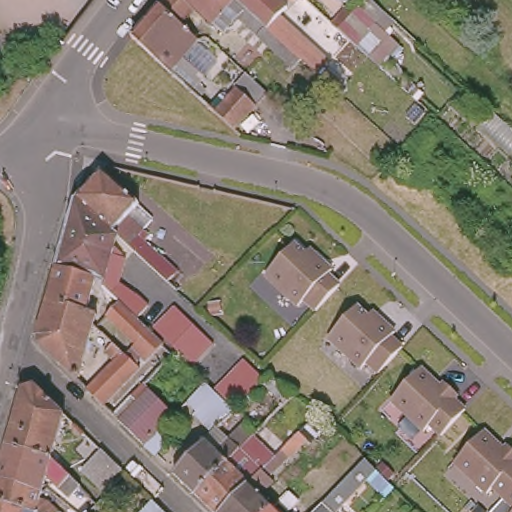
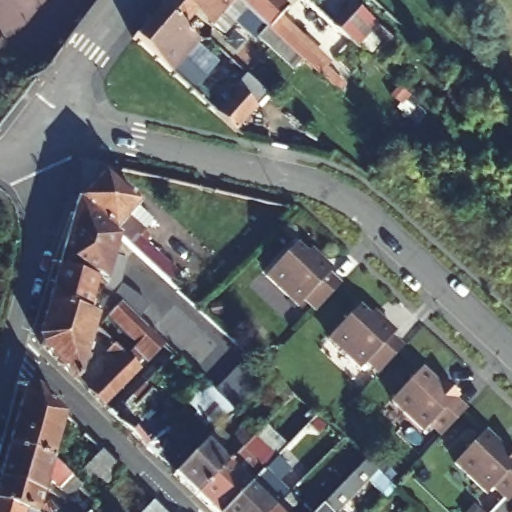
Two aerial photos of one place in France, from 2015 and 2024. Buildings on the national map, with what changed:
unchanged [(184,21),(179,27),(194,42),(180,59),(202,78),(200,80),(189,92),(172,77),(128,38),(140,25),(161,0),(184,21)]
unchanged [(287,70),(232,20),(219,34),(209,25),(205,30),(189,15),(184,21),(161,0),(229,0),(295,60),(287,70)]
unchanged [(284,4),(275,12),(309,45),(295,60),(229,0),(280,0),(284,4)]
unchanged [(299,1),(298,2),(295,0),(300,0),(299,1)]
unchanged [(376,21),(352,46),(329,25),(351,0),(353,0),(376,21)]
unchanged [(393,20),(382,30),(398,45),(386,58),(376,50),(368,59),(352,46),(376,21),(353,0),(373,0),(393,20)]
unchanged [(234,89),(231,86),(241,75),(263,96),(257,102),(232,130),(231,131),(207,109),(213,101),(219,106),(234,89)]
unchanged [(97,172),(147,220),(137,231),(143,238),(139,244),(164,266),(161,270),(170,278),(165,285),(133,256),(112,237),(77,205),(72,200),(97,172)]
unchanged [(117,353),(117,352),(121,356),(130,346),(102,318),(107,315),(110,311),(92,295),(99,288),(91,280),(54,268),(72,200),(77,205),(112,237),(107,257),(120,260),(115,286),(135,298),(147,311),(136,323),(159,345),(142,363),(137,360),(131,366),(135,370),(100,407),(82,391),(82,390),(108,362),(109,361),(117,353)]
unchanged [(290,244),(310,262),(315,258),(327,270),(324,275),(335,285),(315,307),(311,311),(300,300),(294,306),(260,275),(290,244)]
unchanged [(82,314),(70,310),(44,303),(54,268),(91,280),(82,314)]
unchanged [(97,333),(117,352),(117,353),(109,361),(108,362),(99,353),(100,351),(86,338),(75,377),(70,379),(60,370),(35,346),(35,345),(34,341),(44,303),(70,310),(82,314),(92,317),(90,326),(92,329),(97,333)]
unchanged [(355,306),(374,325),(378,321),(390,333),(387,337),(398,348),(374,374),(362,363),(357,369),(324,337),(355,306)]
unchanged [(172,311),(212,349),(192,370),(152,332),(172,311)]
unchanged [(240,361),(260,380),(230,411),(229,411),(210,393),(240,361)]
unchanged [(417,369),(437,389),(442,383),(455,396),(450,401),(460,411),(451,421),(436,437),(425,426),(420,431),(387,400),(417,369)]
unchanged [(200,385),(210,393),(229,411),(230,411),(209,433),(190,416),(192,412),(183,403),(200,385)]
unchanged [(54,460),(7,446),(23,390),(36,386),(65,415),(55,449),(84,477),(77,483),(54,460)]
unchanged [(150,457),(141,448),(110,417),(110,416),(128,398),(134,403),(144,393),(170,418),(160,428),(169,437),(150,457)]
unchanged [(207,512),(191,496),(222,464),(260,424),(269,432),(257,445),(262,450),(249,464),(252,468),(240,481),(245,486),(221,512),(207,512)]
unchanged [(500,450),(504,446),(512,454),(512,512),(508,512),(510,508),(500,498),(489,488),(482,494),(450,463),(480,431),(500,450)]
unchanged [(221,512),(245,486),(295,433),(302,439),(265,478),(269,483),(255,496),(268,508),(265,512),(221,512)]
unchanged [(222,464),(191,496),(169,475),(200,442),(222,464)]
unchanged [(0,477),(0,473),(7,446),(54,460),(77,483),(80,485),(72,492),(62,482),(57,487),(47,476),(44,488),(0,477)]
unchanged [(120,468),(103,486),(85,469),(102,450),(120,468)]
unchanged [(360,461),(371,470),(340,503),(331,512),(312,512),(330,493),(360,461)]
unchanged [(0,502),(0,477),(44,488),(41,498),(47,500),(60,512),(38,512),(37,510),(0,502)]
unchanged [(280,496),(285,502),(280,508),(273,503),(280,496)]
unchanged [(165,512),(144,512),(154,501),(165,512)]
unchanged [(37,510),(38,512),(0,512),(0,502),(37,510)]
unchanged [(295,512),(283,512),(289,505),(295,512)]
unchanged [(272,512),(265,512),(268,508),(272,512)]

